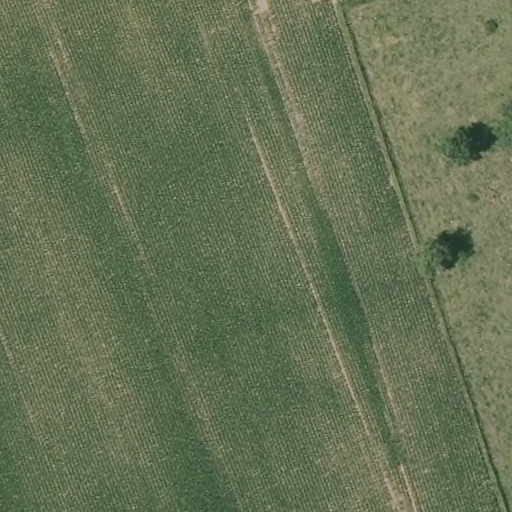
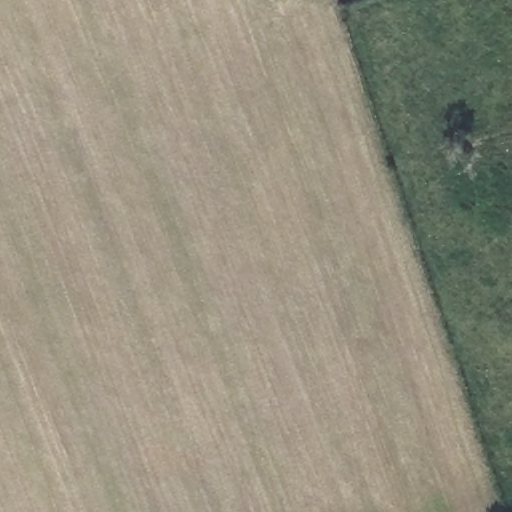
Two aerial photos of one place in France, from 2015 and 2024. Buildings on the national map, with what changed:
[]

